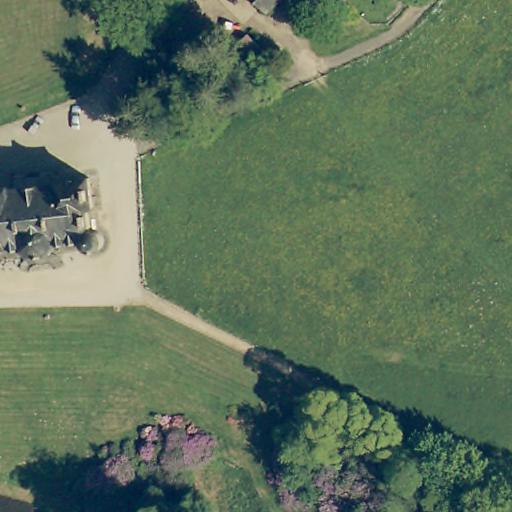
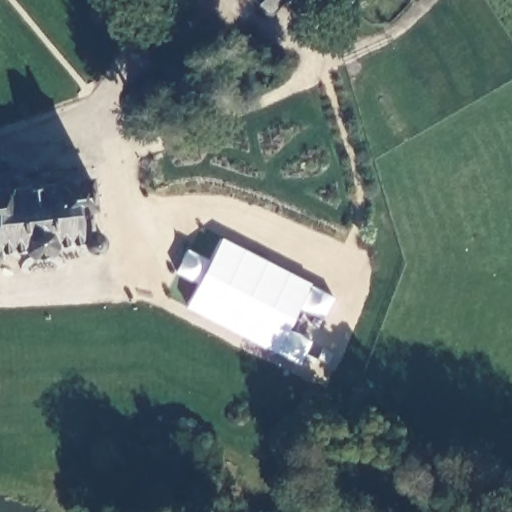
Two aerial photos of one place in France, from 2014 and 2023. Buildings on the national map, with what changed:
unchanged [(255,0),(275,0),(265,10),(255,0)]
unchanged [(92,180),(93,204),(87,204),(90,230),(95,230),(100,232),(104,235),(107,240),(107,246),(105,251),(101,255),(96,258),(91,258),(86,257),(81,253),(79,248),(78,246),(54,247),(50,254),(62,268),(52,274),(41,263),(29,274),(22,266),(35,253),(6,253),(0,259),(0,186),(10,186),(11,175),(55,173),(55,180),(92,180)]
new [(277,354),(185,307),(222,237),(310,283),(277,354)]

